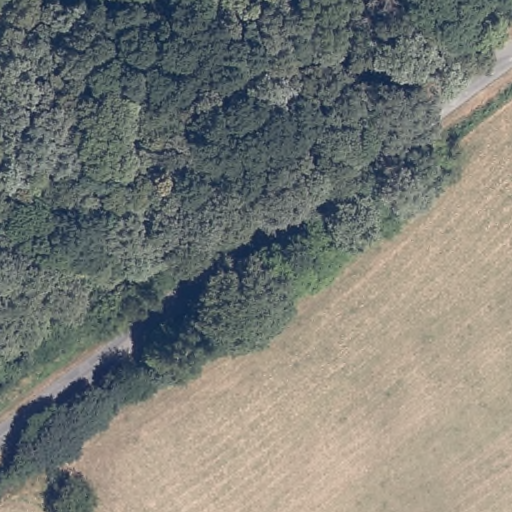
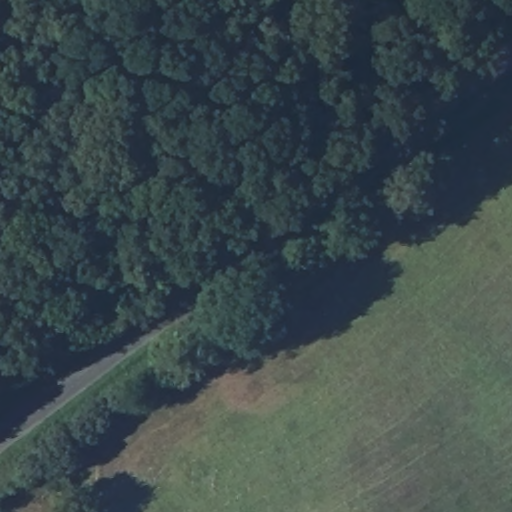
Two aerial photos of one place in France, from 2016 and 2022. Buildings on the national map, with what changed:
[]

